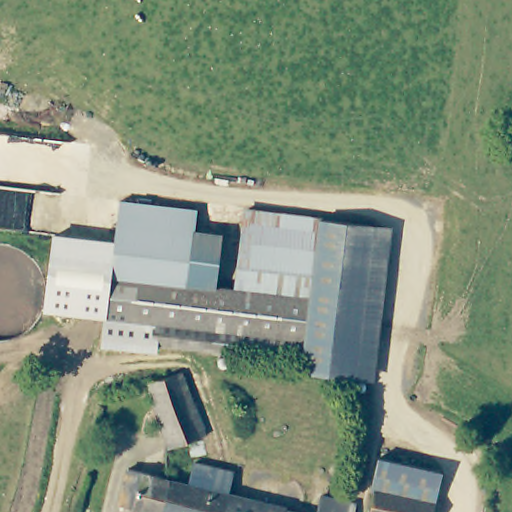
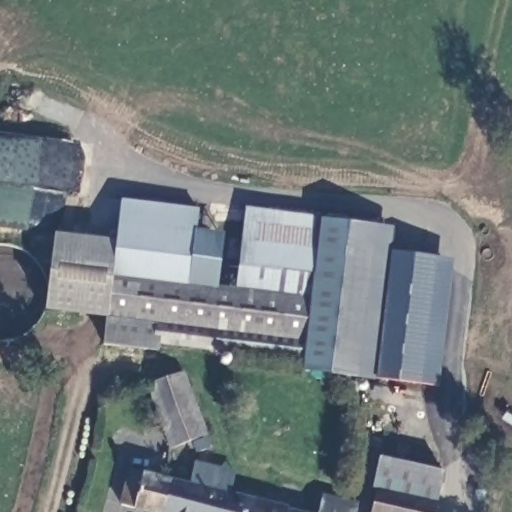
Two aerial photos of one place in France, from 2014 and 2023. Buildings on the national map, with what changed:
unchanged [(312,298),(306,340),(139,320),(107,315),(121,200),(198,210),(195,231),(189,283),(211,286),(236,289),(246,210),(321,219),(312,298)]
unchanged [(312,298),(321,219),(385,227),(367,377),(303,369),(306,340),(312,298)]
unchanged [(195,231),(217,233),(211,286),(189,283),(195,231)]
unchanged [(107,315),(45,308),(54,234),(116,240),(107,315)]
new [(451,259),(436,387),(367,377),(382,255),(383,250),(451,259)]
unchanged [(139,320),(226,330),(222,353),(157,346),(156,352),(101,344),(107,315),(139,320)]
unchanged [(207,435),(170,448),(149,384),(183,372),(207,435)]
unchanged [(372,488),(379,458),(441,473),(439,483),(434,503),(375,488),(372,488)]
unchanged [(229,471),(224,492),(287,507),(308,512),(163,512),(170,479),(188,483),(193,463),(229,471)]
unchanged [(130,472),(143,475),(144,472),(170,479),(163,512),(148,512),(121,505),(130,472)]
unchanged [(432,512),(370,512),(375,488),(434,503),(432,512)]
unchanged [(356,504),(355,512),(319,512),(322,495),(356,504)]

